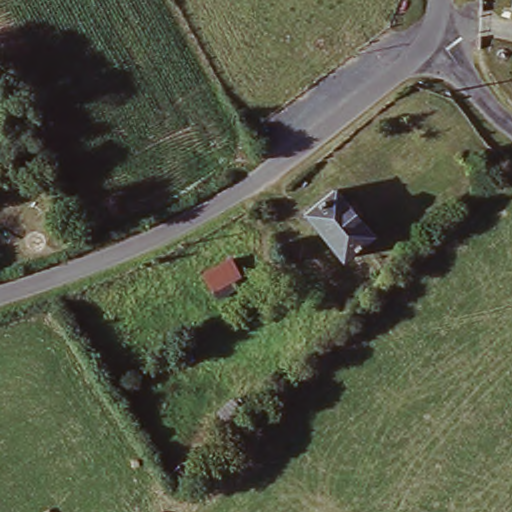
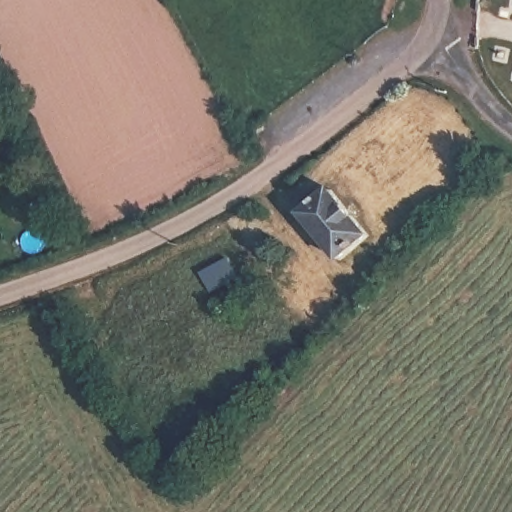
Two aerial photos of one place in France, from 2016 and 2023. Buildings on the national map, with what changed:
unchanged [(0,123),(0,105),(7,119),(0,123)]
unchanged [(365,231),(335,255),(297,209),(327,185),(365,231)]
unchanged [(239,272),(211,287),(201,269),(229,254),(239,272)]
unchanged [(372,276),(381,266),(391,277),(382,287),(372,276)]

